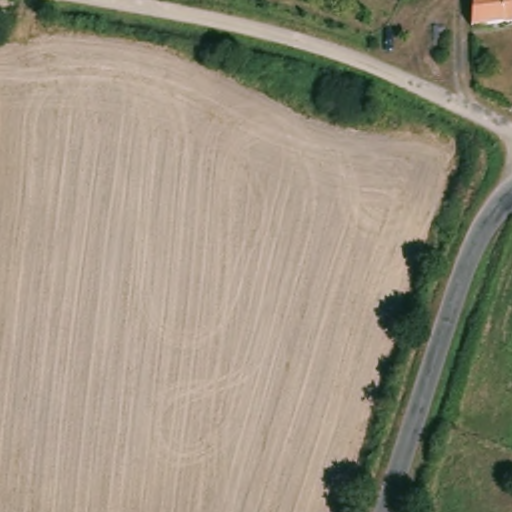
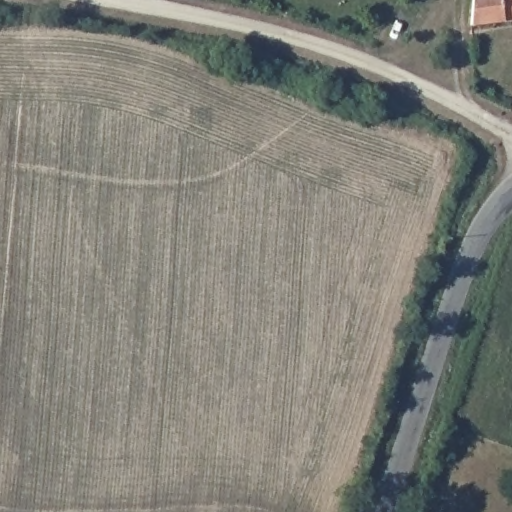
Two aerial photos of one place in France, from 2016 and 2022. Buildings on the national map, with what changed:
unchanged [(475,0),(512,0),(512,21),(474,26),(475,0)]

